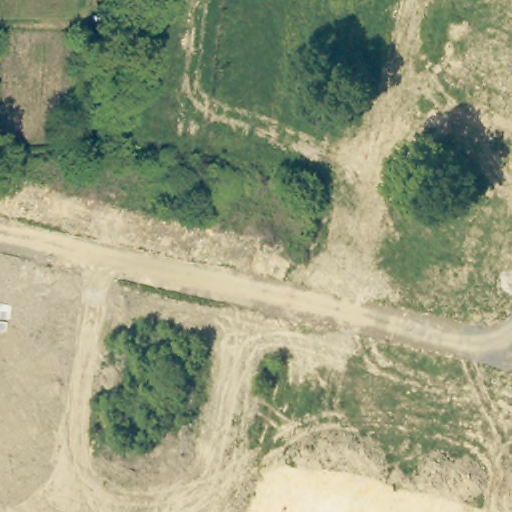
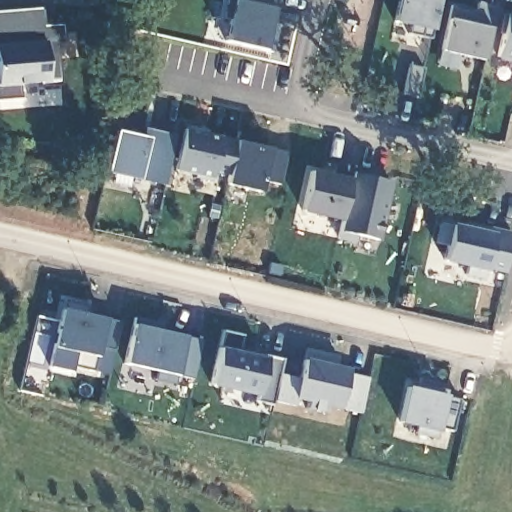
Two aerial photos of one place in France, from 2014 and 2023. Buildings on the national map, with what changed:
new [(276,0),(270,25),(273,26),(276,31),(272,52),(224,41),(229,20),(223,18),(228,0),(276,0)]
new [(410,33),(411,26),(393,21),(399,0),(438,0),(432,30),(431,36),(410,33)]
new [(451,5),(476,11),(478,3),(495,6),(483,60),(441,51),(451,5)]
new [(41,8),(44,26),(62,25),(64,42),(56,43),(61,85),(41,87),(37,83),(18,85),(20,98),(0,99),(0,11),(41,8)]
new [(512,61),(496,58),(504,13),(512,14),(512,61)]
new [(138,136),(144,128),(176,136),(162,185),(104,174),(114,131),(138,136)]
new [(234,140),(236,131),(265,137),(261,146),(287,152),(281,185),(262,183),(258,192),(225,184),(226,175),(214,172),(212,179),(174,170),(182,128),(234,140)]
new [(340,220),(300,211),(309,171),(333,177),(336,164),(352,167),(351,173),(340,220)]
unchanged [(6,170),(7,185),(0,185),(0,170),(6,170)]
new [(379,240),(355,236),(352,244),(335,241),(352,171),(392,181),(379,240)]
new [(466,222),(512,232),(512,239),(504,274),(485,270),(483,282),(463,277),(463,267),(442,263),(451,224),(463,226),(466,222)]
new [(89,306),(84,315),(122,322),(115,350),(98,349),(97,356),(93,355),(92,371),(72,367),(71,351),(52,347),(64,300),(89,306)]
new [(157,323),(153,329),(185,336),(184,338),(205,342),(196,380),(176,376),(173,385),(153,381),(155,372),(125,366),(133,317),(157,323)]
new [(241,334),(234,351),(282,360),(278,374),(298,378),(305,348),(337,356),(333,366),(348,369),(346,375),(367,379),(359,413),(326,407),(324,414),(303,409),(305,404),(293,401),(293,407),(271,401),(270,405),(253,402),(253,397),(208,387),(221,330),(241,334)]
new [(412,388),(416,383),(446,390),(441,396),(444,397),(443,400),(457,401),(449,431),(437,429),(436,434),(434,433),(434,440),(412,435),(412,428),(396,424),(404,386),(412,388)]

